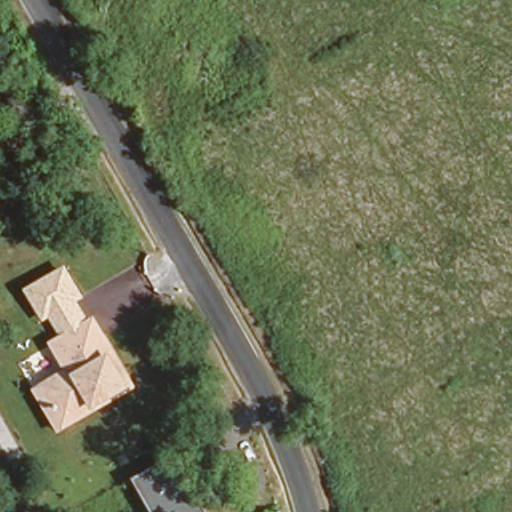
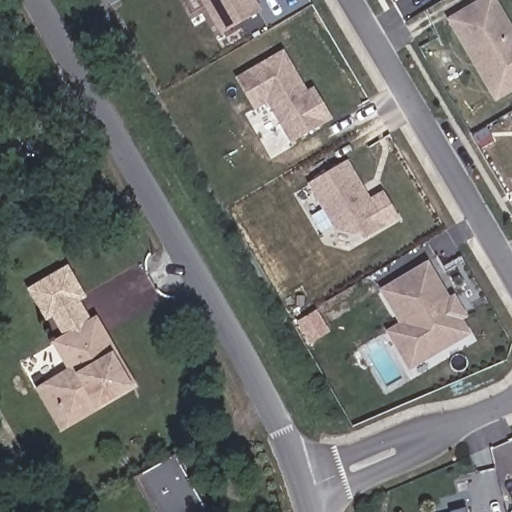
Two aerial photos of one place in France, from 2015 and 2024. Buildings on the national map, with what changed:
new [(220,35),(200,0),(256,0),(262,10),(220,35)]
new [(495,102),(446,19),(476,0),(498,0),(512,25),(512,92),(495,102)]
new [(289,143),(266,102),(253,110),(235,77),(283,50),(306,90),(313,87),(332,120),(289,143)]
new [(366,237),(334,230),(307,184),(347,160),(369,197),(383,190),(399,219),(366,237)]
new [(408,371),(384,331),(397,322),(378,289),(427,260),(449,297),(454,295),(467,316),(462,319),(471,334),(408,371)]
unchanged [(66,266),(84,297),(79,301),(86,312),(83,313),(55,329),(50,318),(43,322),(26,289),(66,266)]
unchanged [(62,361),(47,334),(55,329),(83,313),(86,312),(90,309),(112,348),(132,382),(123,387),(56,426),(49,430),(22,381),(62,361)]
new [(206,512),(152,512),(133,478),(176,456),(206,512)]
demolished [(114,512),(111,507),(131,497),(139,512),(114,512)]
new [(466,507),(468,512),(450,512),(466,507)]

